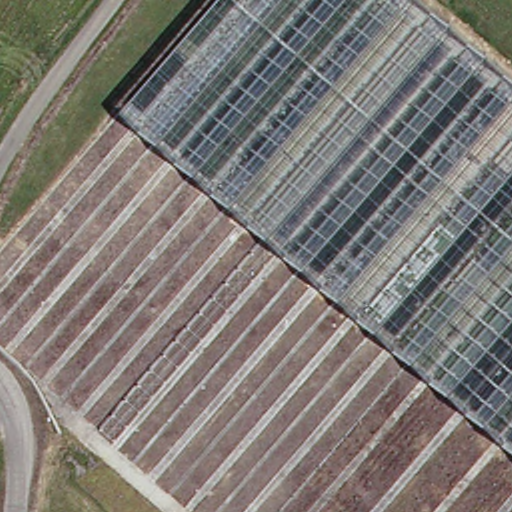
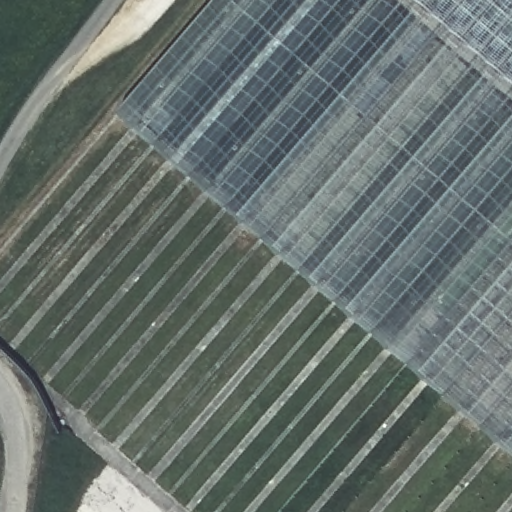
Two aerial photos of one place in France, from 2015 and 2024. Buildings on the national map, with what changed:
unchanged [(512,65),(512,441),(127,108),(218,0),(436,0),(512,65)]
new [(436,0),(512,0),(512,65),(436,0)]

